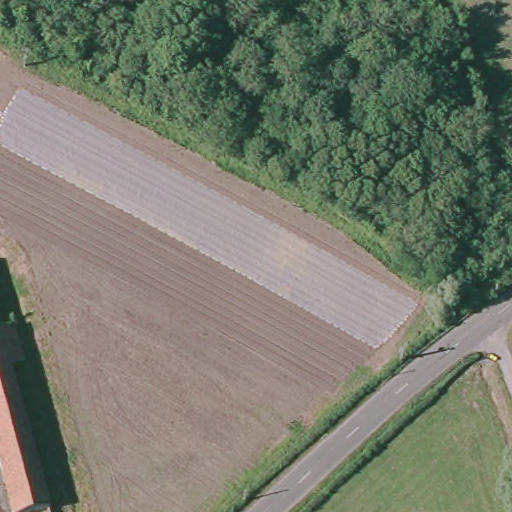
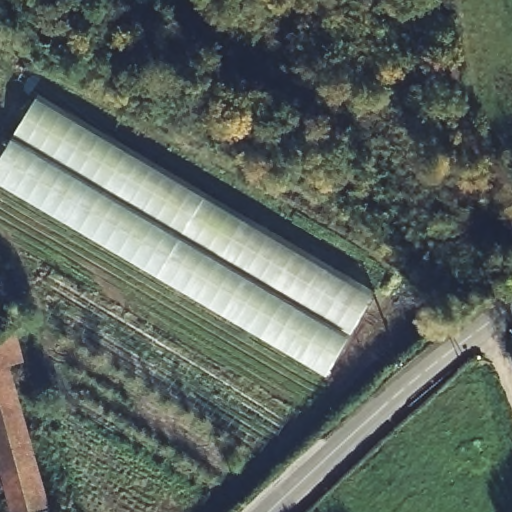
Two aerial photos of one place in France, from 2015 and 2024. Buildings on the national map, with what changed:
new [(372,302),(327,383),(0,190),(0,162),(36,104),(372,302)]
unchanged [(30,512),(16,512),(0,455),(0,328),(17,323),(25,358),(12,362),(50,507),(30,512)]

